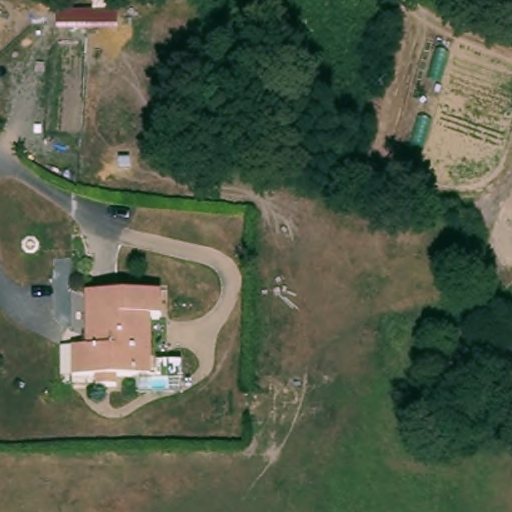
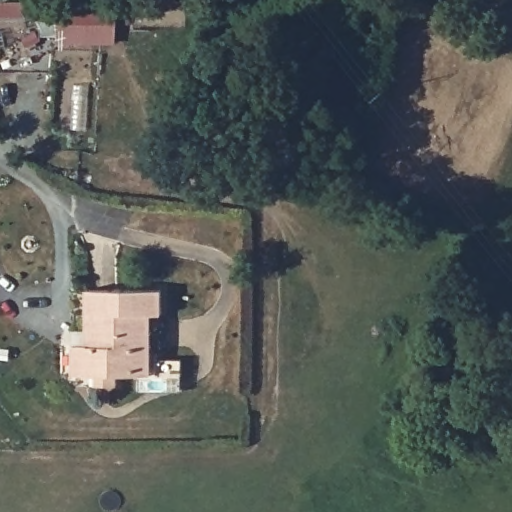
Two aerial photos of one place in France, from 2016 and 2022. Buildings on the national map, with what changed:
new [(57,13),(118,12),(117,44),(57,43),(57,13)]
unchanged [(166,314),(154,314),(154,376),(70,372),(72,343),(90,344),(93,285),(163,287),(166,314)]

